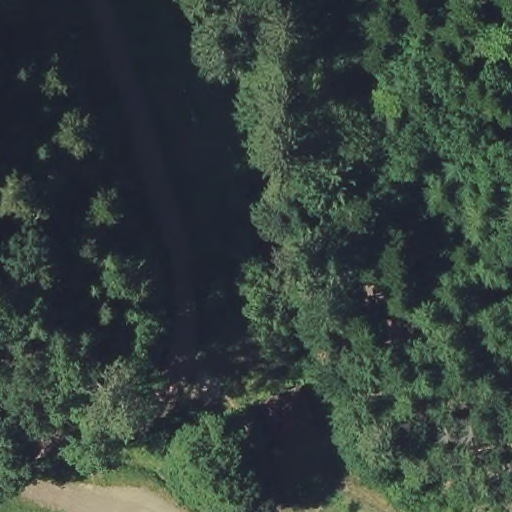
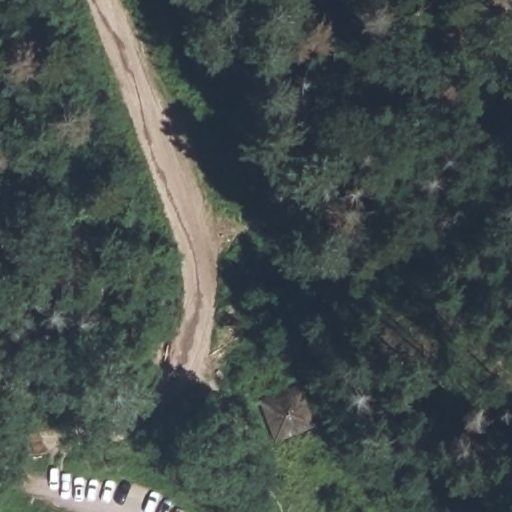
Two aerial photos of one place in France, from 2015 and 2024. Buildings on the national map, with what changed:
unchanged [(256,403),(298,389),(312,429),(271,446),(256,403)]

